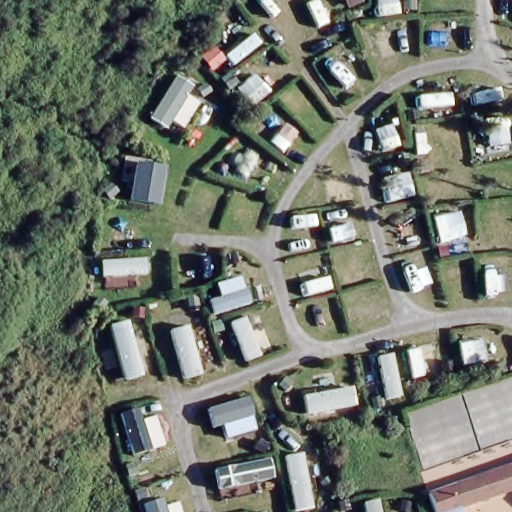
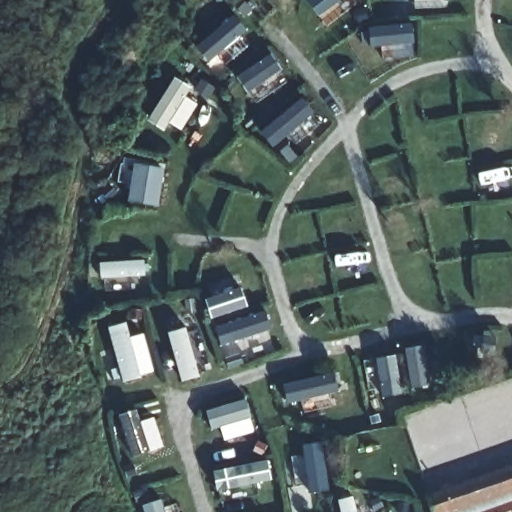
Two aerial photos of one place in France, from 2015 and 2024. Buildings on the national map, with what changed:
unchanged [(436,512),(428,488),(512,460),(512,486),(436,512)]

